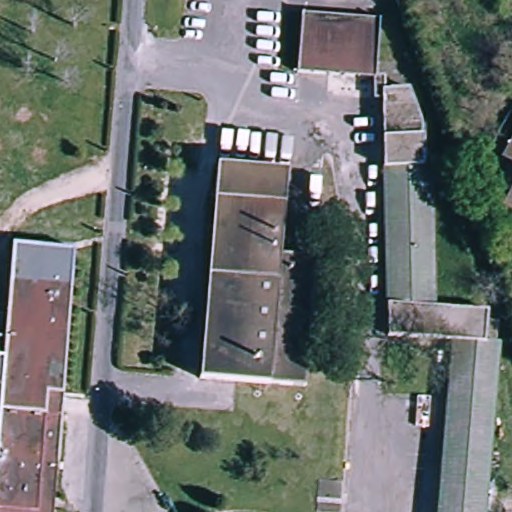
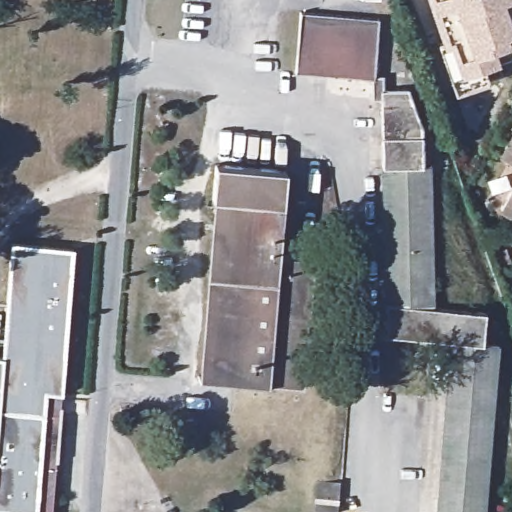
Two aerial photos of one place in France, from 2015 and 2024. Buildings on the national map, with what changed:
new [(498,59),(485,64),(488,79),(455,90),(449,74),(437,44),(441,43),(427,0),(512,0),(512,52),(497,56),(498,59)]
unchanged [(292,80),(293,19),(371,20),(370,83),(292,80)]
unchanged [(442,334),(377,333),(379,94),(404,94),(408,109),(412,123),(412,146),(420,146),(419,304),(472,305),(472,313),(483,313),(483,334),(486,334),(485,512),(440,512),(442,334)]
unchanged [(512,133),(512,139),(510,138),(512,133)]
unchanged [(314,232),(305,387),(197,380),(210,170),(283,175),(281,230),(314,232)]
unchanged [(1,354),(11,243),(71,249),(50,512),(0,512),(0,366),(1,354)]
unchanged [(1,354),(0,366),(0,354),(1,354)]

